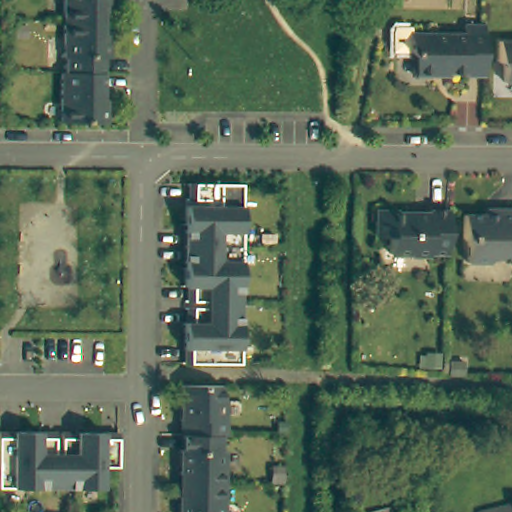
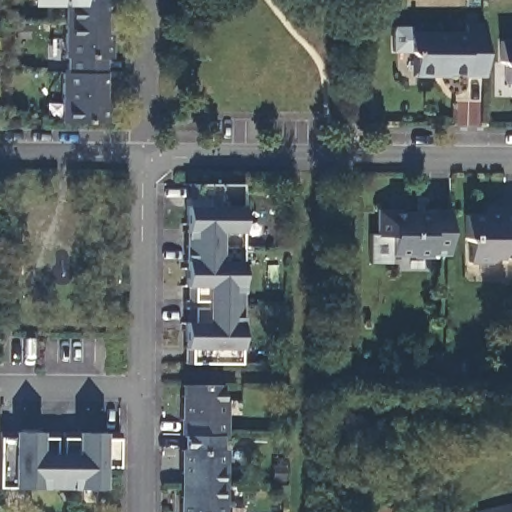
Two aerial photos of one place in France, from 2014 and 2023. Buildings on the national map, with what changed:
unchanged [(65,0),(111,0),(105,0),(105,8),(105,19),(65,19),(65,0)]
unchanged [(67,69),(67,54),(64,53),(65,19),(105,19),(105,30),(105,37),(111,37),(110,54),(104,54),(104,69),(67,69)]
unchanged [(484,77),(465,77),(465,74),(436,74),(433,77),(415,77),(415,58),(410,53),(410,34),(465,34),(465,25),(485,25),(484,77)]
unchanged [(504,68),(499,63),(500,42),(512,42),(512,83),(504,83),(504,68)]
unchanged [(61,118),(62,68),(67,69),(104,69),(104,102),(108,102),(107,119),(61,118)]
unchanged [(185,234),(186,207),(208,207),(208,201),(188,200),(188,184),(242,185),(241,235),(185,234)]
unchanged [(491,263),(468,263),(469,243),(464,239),(464,215),(496,216),(496,209),(512,209),(512,259),(495,259),(491,263)]
unchanged [(430,258),(412,258),(412,255),(391,255),(391,237),(376,237),(377,211),(399,211),(399,214),(417,214),(417,217),(429,217),(429,211),(450,212),(449,256),(430,255),(430,258)]
unchanged [(184,352),(185,323),(187,323),(187,309),(206,309),(206,302),(187,302),(187,288),(185,288),(185,234),(241,235),(240,352),(240,365),(184,364),(184,352)]
unchanged [(221,436),(184,435),(184,420),(180,420),(181,404),(187,404),(187,397),(187,386),(222,386),(222,401),(227,401),(226,436),(221,436)]
unchanged [(0,489),(0,433),(56,433),(56,455),(62,455),(62,433),(119,434),(119,468),(104,468),(103,490),(2,489),(0,489)]
unchanged [(221,436),(221,451),(226,451),(226,486),(186,486),(186,474),(186,468),(180,468),(180,450),(184,450),(184,435),(221,436)]
unchanged [(226,512),(180,512),(180,504),(186,504),(186,497),(186,486),(226,486),(226,512)]
unchanged [(378,512),(392,509),(393,512),(378,512)]
unchanged [(512,512),(504,512),(512,510),(512,512)]

